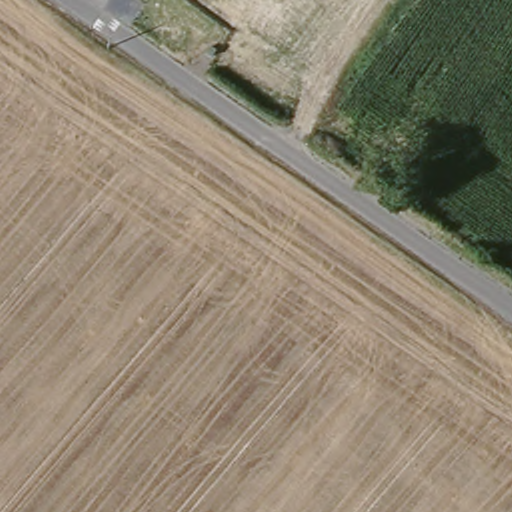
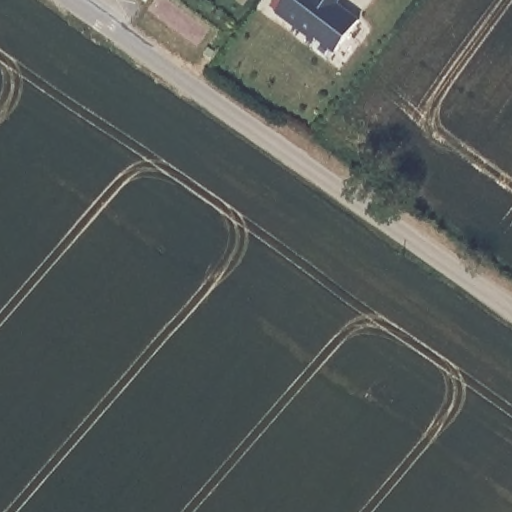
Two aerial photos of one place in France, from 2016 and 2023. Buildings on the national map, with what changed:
new [(316,34),(314,37),(277,8),(284,0),(337,0),(358,17),(336,48),(316,34)]

